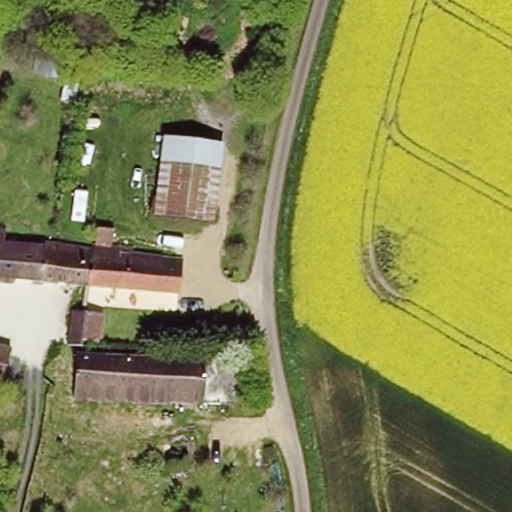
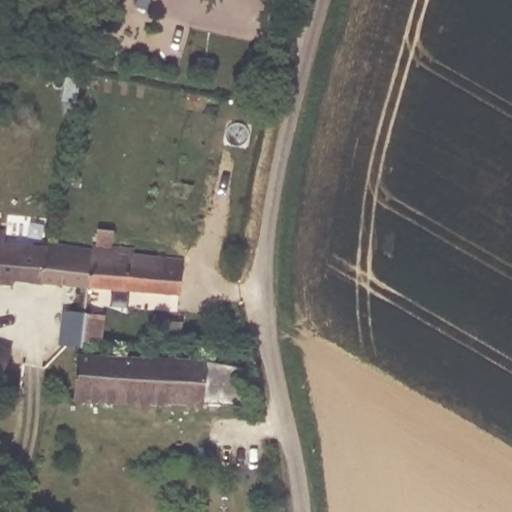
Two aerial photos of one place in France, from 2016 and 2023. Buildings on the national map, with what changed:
demolished [(166,136),(229,144),(220,222),(153,214),(166,136)]
unchanged [(35,248),(35,244),(57,247),(95,251),(92,284),(0,278),(0,230),(6,230),(5,245),(35,248)]
unchanged [(136,248),(136,254),(178,258),(185,258),(180,290),(92,284),(95,251),(96,243),(136,248)]
unchanged [(79,312),(91,312),(90,332),(78,332),(78,345),(64,344),(64,318),(79,319),(79,312)]
unchanged [(135,355),(136,397),(76,397),(78,354),(135,355)]
unchanged [(242,358),(242,401),(136,397),(135,355),(242,358)]
unchanged [(198,449),(196,464),(175,463),(161,463),(163,447),(198,449)]

